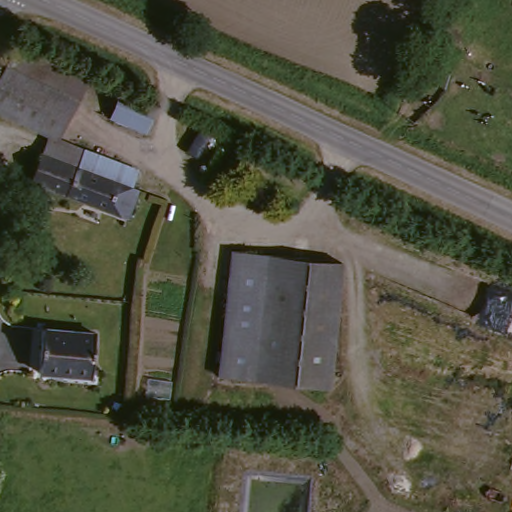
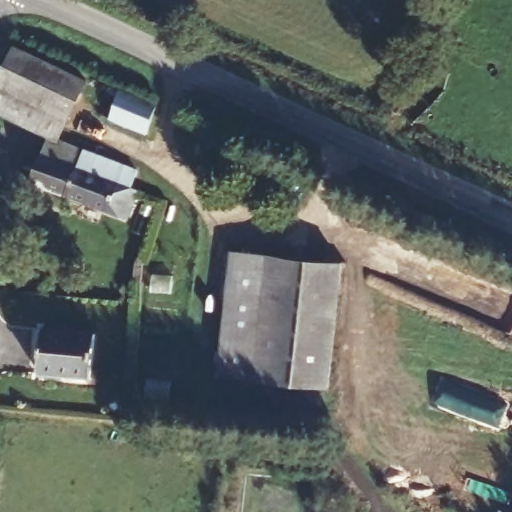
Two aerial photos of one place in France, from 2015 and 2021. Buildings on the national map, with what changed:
unchanged [(85,77),(57,134),(49,130),(0,106),(0,74),(14,41),(85,77)]
unchanged [(160,107),(147,135),(109,118),(121,90),(160,107)]
unchanged [(57,134),(146,168),(139,185),(40,149),(49,130),(57,134)]
unchanged [(139,185),(128,214),(30,178),(40,149),(139,185)]
unchanged [(239,247),(290,255),(352,266),(332,386),(218,367),(231,291),(239,247)]
unchanged [(47,319),(101,327),(91,384),(37,376),(47,319)]

